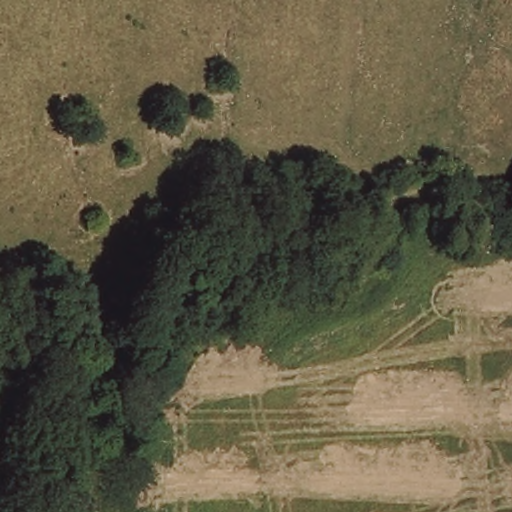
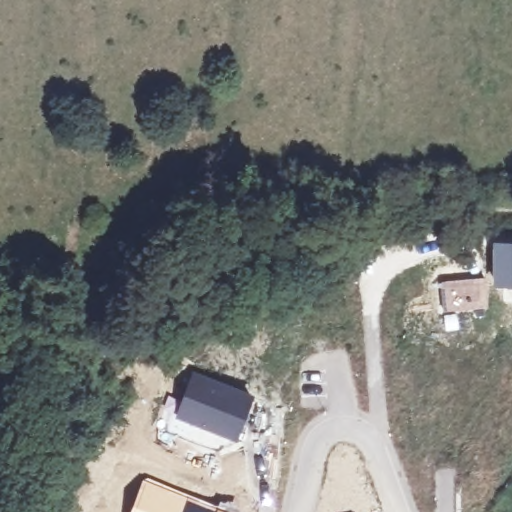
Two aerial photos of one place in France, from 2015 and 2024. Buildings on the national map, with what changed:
new [(512,241),(512,287),(494,287),(492,241),(512,241)]
new [(487,277),(489,307),(458,312),(461,328),(446,331),(443,281),(487,277)]
new [(193,370),(252,392),(235,441),(174,418),(193,370)]
new [(218,505),(215,512),(130,512),(143,477),(218,505)]
new [(234,512),(215,512),(218,505),(234,512)]

